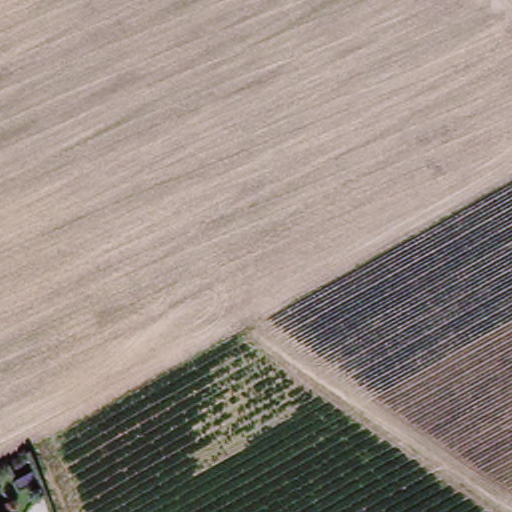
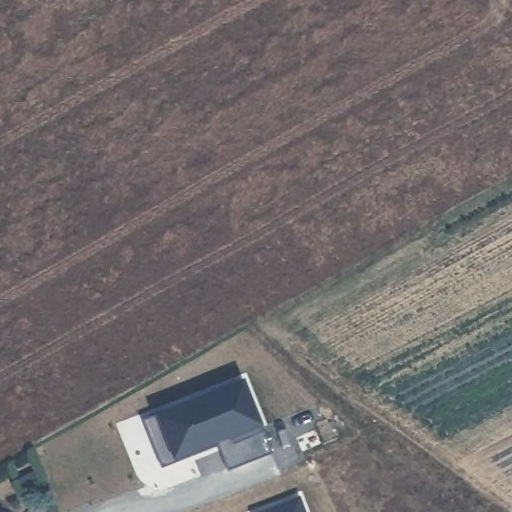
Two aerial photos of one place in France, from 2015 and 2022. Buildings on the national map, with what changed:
new [(243,380),(271,452),(240,465),(230,441),(161,467),(142,420),(243,380)]
new [(240,465),(227,470),(218,445),(230,441),(240,465)]
new [(302,512),(263,512),(298,499),(302,512)]

